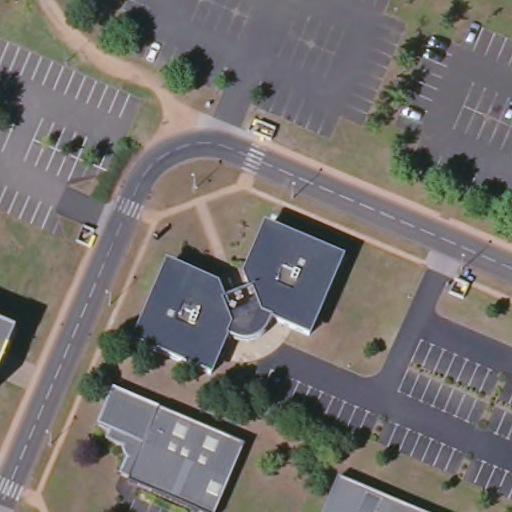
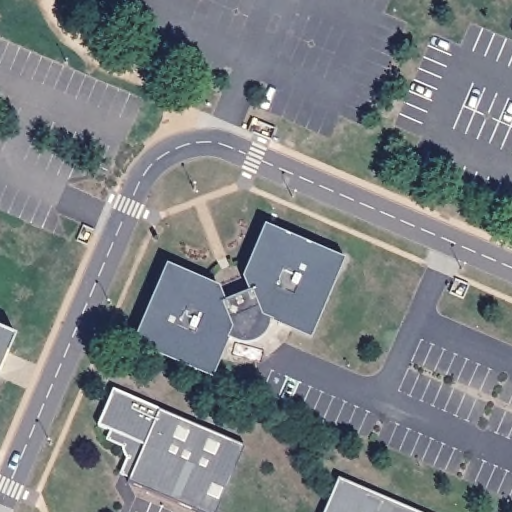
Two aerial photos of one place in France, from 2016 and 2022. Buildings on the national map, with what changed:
unchanged [(274,320),(272,327),(269,334),(265,338),(260,341),(257,343),(250,345),(244,344),(237,343),(232,340),(230,339),(212,375),(137,342),(170,267),(219,288),(224,301),(252,290),(247,277),(267,227),(344,260),(311,335),(274,320)]
unchanged [(0,374),(0,328),(17,335),(0,374)]
unchanged [(139,440),(94,421),(110,384),(241,440),(211,512),(204,512),(123,478),(139,440)]
unchanged [(419,512),(324,512),(339,477),(419,512)]

